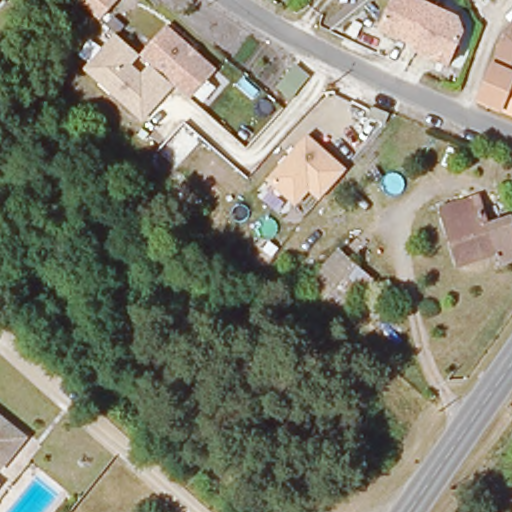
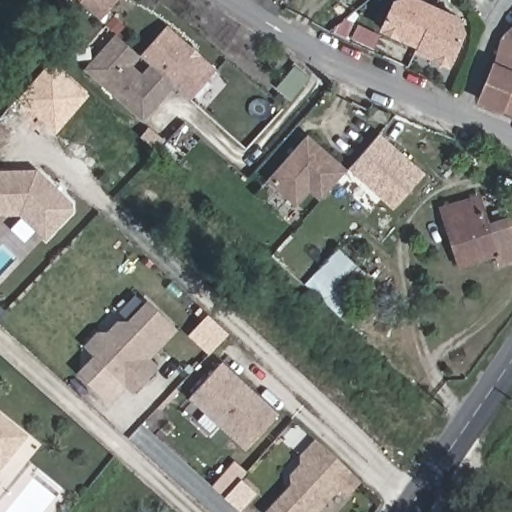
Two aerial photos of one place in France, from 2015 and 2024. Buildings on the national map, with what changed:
unchanged [(78,0),(120,0),(101,21),(78,0)]
unchanged [(450,65),(378,29),(390,0),(428,0),(461,16),(465,34),(450,65)]
unchanged [(189,100),(173,86),(144,121),(84,71),(115,35),(140,55),(168,25),(218,69),(189,100)]
unchanged [(506,31),(512,25),(512,73),(495,66),(506,31)]
new [(15,99),(49,60),(87,95),(55,134),(15,99)]
unchanged [(512,73),(512,113),(480,100),(495,66),(512,73)]
unchanged [(348,168),(320,199),(311,191),(297,206),(265,180),(307,134),(348,168)]
new [(394,210),(348,168),(380,134),(424,173),(394,210)]
new [(19,174),(39,175),(73,207),(74,214),(49,239),(24,215),(0,214),(0,173),(19,174)]
unchanged [(490,255),(457,266),(440,209),(476,198),(483,219),(512,211),(512,259),(493,264),(490,255)]
unchanged [(341,312),(308,283),(340,250),(372,281),(341,312)]
new [(150,358),(159,367),(133,393),(84,345),(97,331),(107,331),(118,320),(128,320),(148,300),(178,330),(150,358)]
new [(245,450),(190,398),(223,361),(280,414),(245,450)]
unchanged [(26,447),(1,476),(0,475),(0,422),(26,447)]
new [(348,499),(340,493),(321,512),(266,512),(290,488),(289,477),(299,466),(299,458),(315,441),(362,483),(348,499)]

